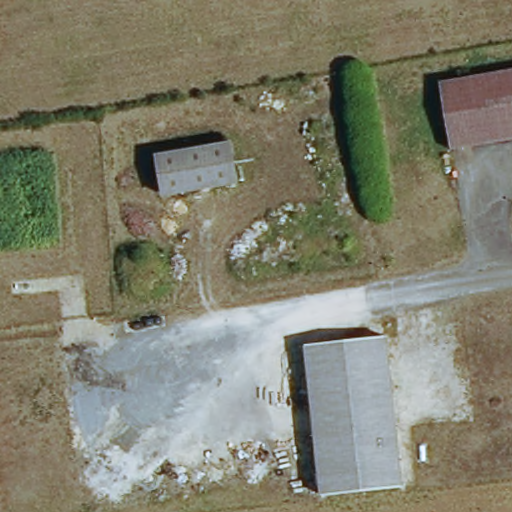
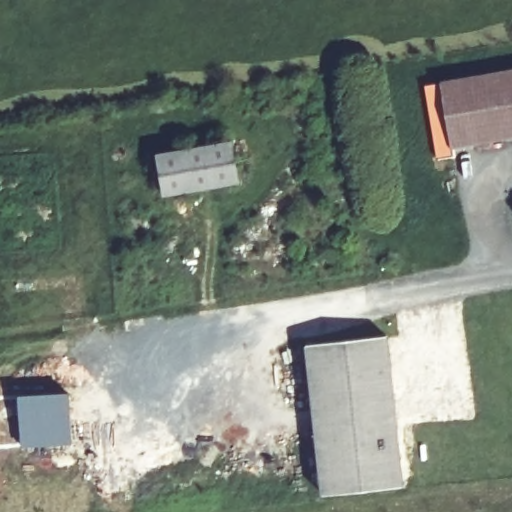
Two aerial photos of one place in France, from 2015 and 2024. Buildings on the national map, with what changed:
unchanged [(441,78),(512,67),(512,136),(452,145),(441,78)]
new [(452,145),(453,155),(438,157),(427,86),(442,84),(452,145)]
unchanged [(158,152),(233,140),(240,179),(166,191),(158,152)]
unchanged [(389,335),(406,482),(321,493),(306,344),(389,335)]
new [(68,391),(72,445),(20,447),(17,395),(68,391)]

